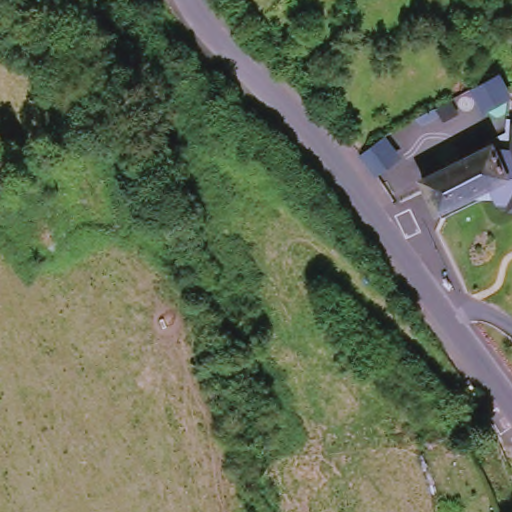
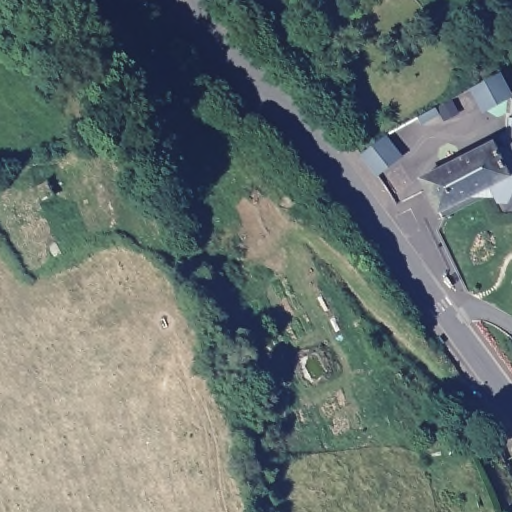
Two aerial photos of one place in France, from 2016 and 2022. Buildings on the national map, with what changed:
unchanged [(487,101),(475,80),(502,65),(507,74),(512,85),(512,86),(487,101)]
unchanged [(426,127),(421,119),(440,108),(445,117),(426,127)]
unchanged [(490,180),(435,208),(420,176),(492,139),(499,152),(512,146),(512,135),(512,204),(510,204),(510,197),(498,197),(490,180)]
unchanged [(378,175),(365,156),(386,139),(400,159),(378,175)]

